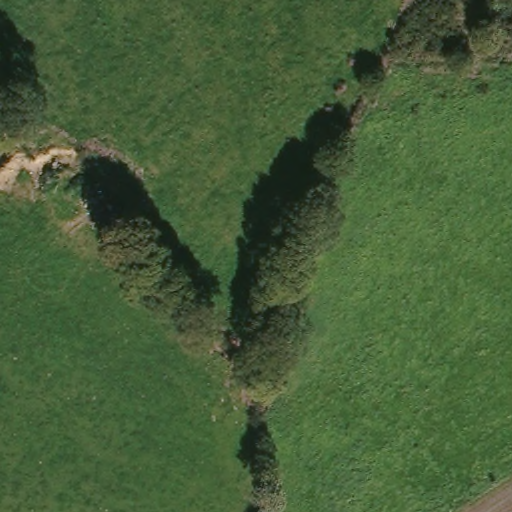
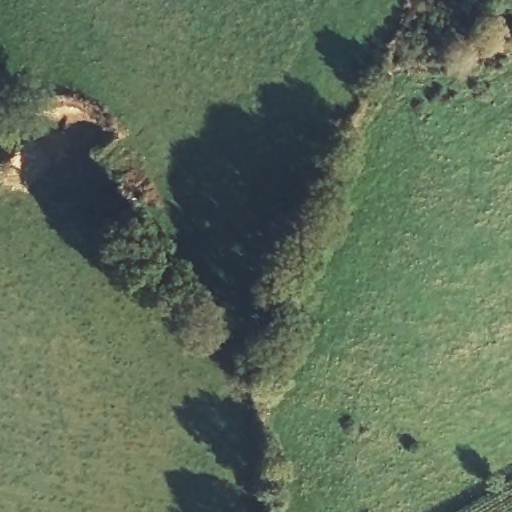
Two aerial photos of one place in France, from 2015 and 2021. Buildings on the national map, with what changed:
[]

